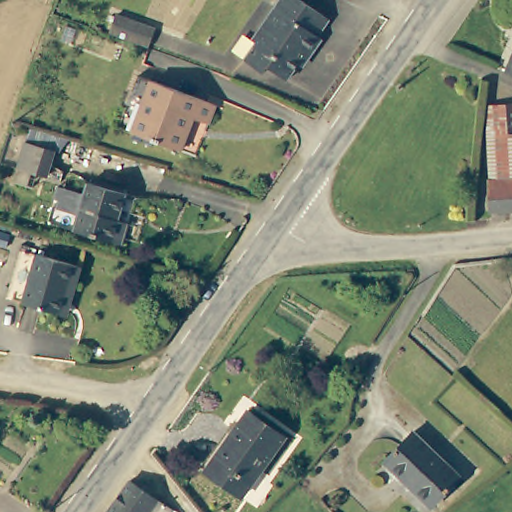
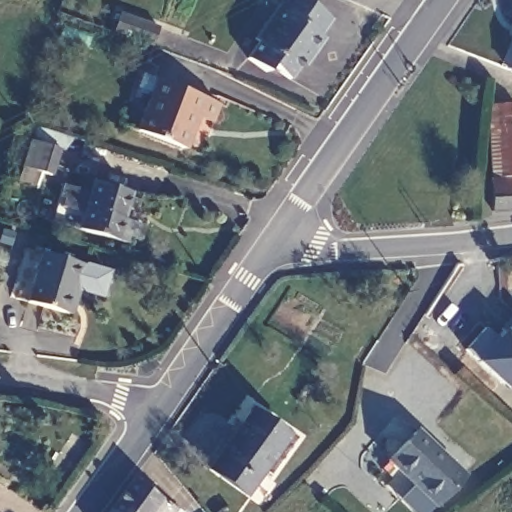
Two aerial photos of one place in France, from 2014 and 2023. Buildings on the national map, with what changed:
unchanged [(318,27),(322,31),(312,47),(307,45),(289,70),(271,59),(266,65),(246,52),(258,33),(255,29),(275,0),(316,0),(330,10),(318,27)]
unchanged [(147,19),(141,37),(102,23),(108,6),(147,19)]
unchanged [(512,70),(512,73),(511,72),(512,70)]
unchanged [(217,100),(211,118),(192,112),(182,144),(134,127),(152,77),(217,100)]
unchanged [(490,177),(485,102),(512,99),(512,211),(489,212),(486,177),(490,177)]
unchanged [(39,174),(37,186),(13,179),(17,166),(25,141),(30,124),(67,136),(63,150),(54,148),(49,177),(39,174)]
unchanged [(95,181),(126,190),(119,217),(128,221),(122,241),(75,226),(77,212),(59,206),(62,197),(54,195),(57,183),(66,186),(91,192),(95,181)]
unchanged [(15,299),(32,248),(75,262),(69,281),(60,313),(52,310),(15,299)]
unchanged [(286,431),(242,490),(207,465),(252,405),(286,431)]
unchanged [(457,476),(432,505),(385,461),(411,433),(457,476)]
unchanged [(171,508),(168,512),(104,512),(128,478),(171,508)]

